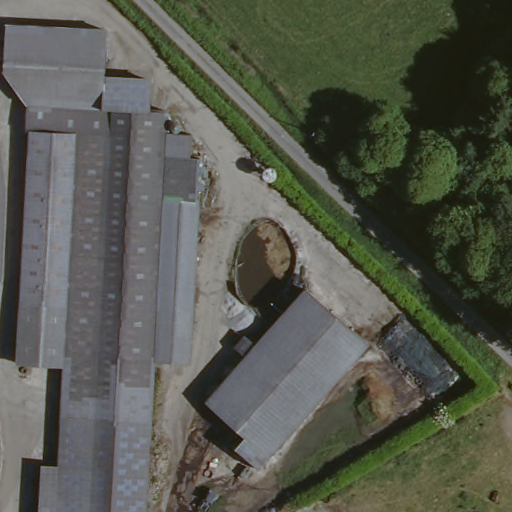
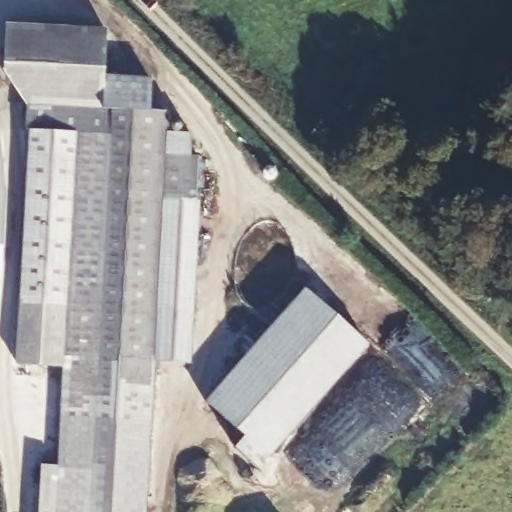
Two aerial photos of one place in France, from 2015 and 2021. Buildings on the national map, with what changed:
unchanged [(27,101),(11,85),(2,76),(4,23),(104,25),(103,62),(102,74),(153,75),(153,105),(165,105),(164,163),(196,164),(195,195),(191,356),(161,355),(159,355),(157,421),(155,512),(49,512),(50,461),(64,462),(68,364),(18,363),(29,126),(26,126),(27,101)]
unchanged [(0,229),(0,131),(6,131),(0,229)]
unchanged [(306,292),(367,347),(266,459),(205,404),(306,292)]

